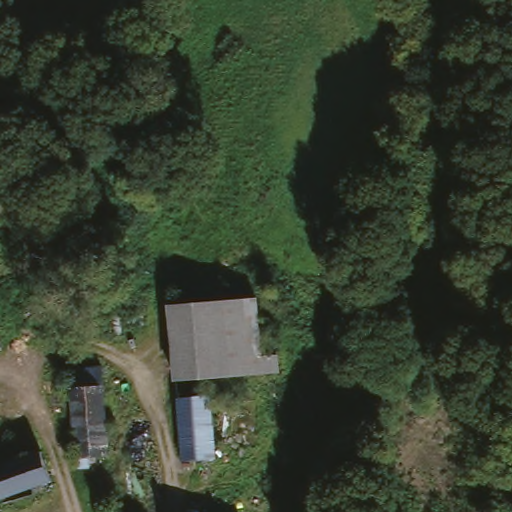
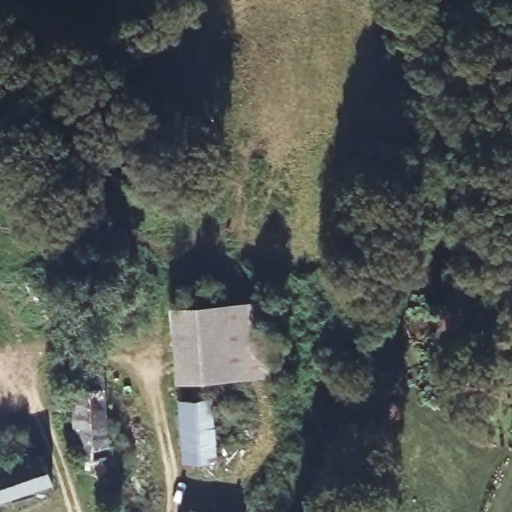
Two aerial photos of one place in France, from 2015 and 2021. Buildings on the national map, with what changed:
unchanged [(174,311),(243,305),(261,304),(266,350),(268,379),(211,385),(203,333),(176,335),(174,311)]
unchanged [(176,335),(203,333),(211,385),(180,388),(177,348),(176,335)]
unchanged [(95,371),(106,460),(74,463),(64,374),(95,371)]
unchanged [(215,459),(185,463),(176,400),(208,398),(215,459)]
unchanged [(53,480),(3,503),(0,505),(0,471),(41,453),(53,480)]

